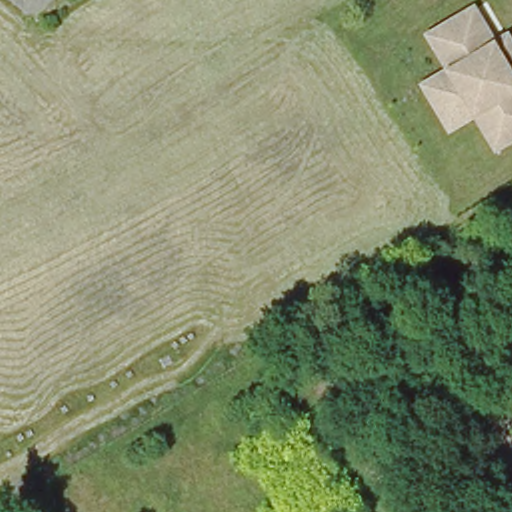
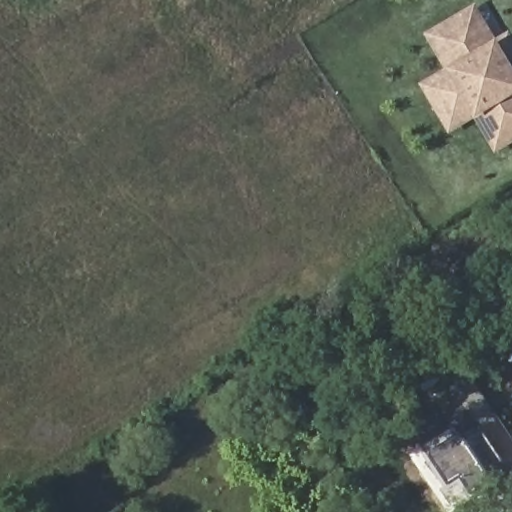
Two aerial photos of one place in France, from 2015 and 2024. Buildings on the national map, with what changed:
unchanged [(475,119),(450,133),(420,85),(445,69),(425,34),(476,3),(496,38),(509,31),(512,36),(512,143),(495,154),(475,119)]
new [(464,438),(480,428),(500,458),(486,468),(496,484),(456,512),(447,512),(408,453),(452,424),(460,432),(464,438)]

